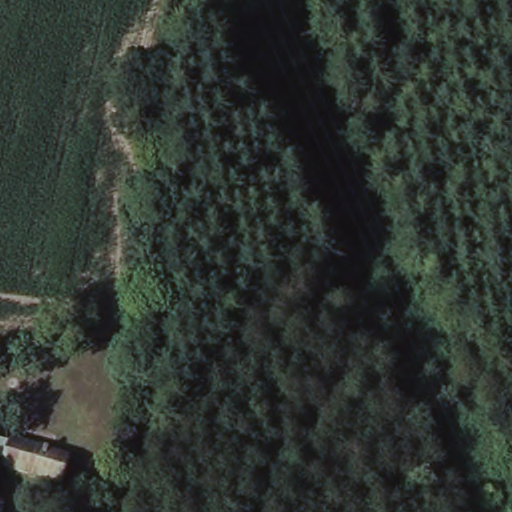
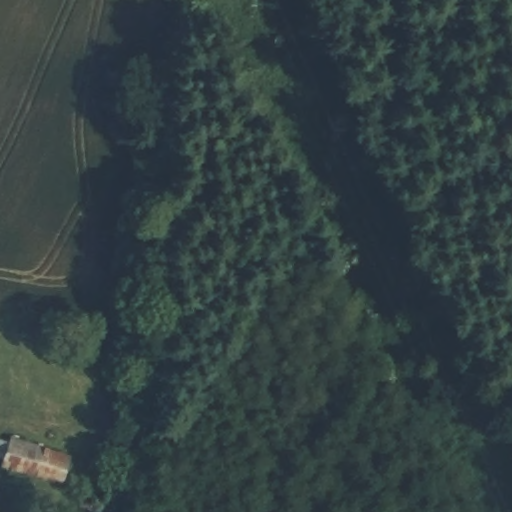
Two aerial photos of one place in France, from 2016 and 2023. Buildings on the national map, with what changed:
unchanged [(65,486),(8,466),(11,458),(0,455),(0,453),(4,438),(15,443),(17,437),(75,456),(65,486)]

